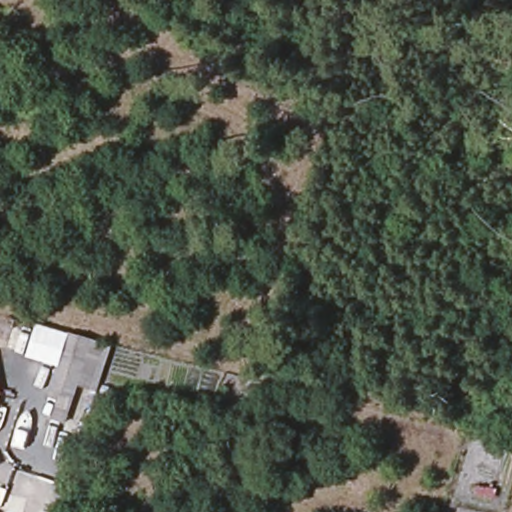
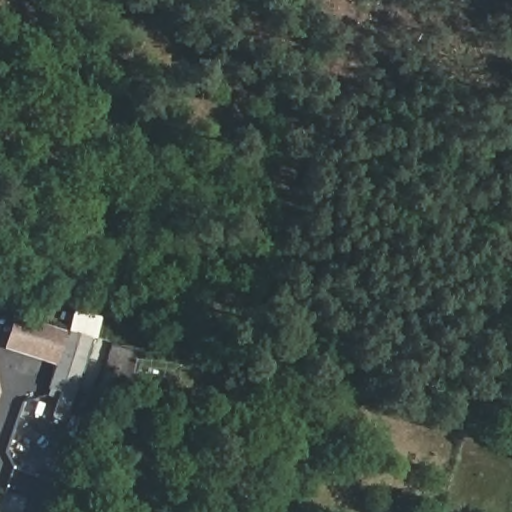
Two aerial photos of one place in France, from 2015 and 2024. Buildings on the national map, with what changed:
unchanged [(93,390),(73,385),(60,423),(47,420),(52,400),(43,396),(52,366),(20,356),(26,337),(59,347),(64,331),(70,310),(99,317),(94,340),(108,344),(93,390)]

